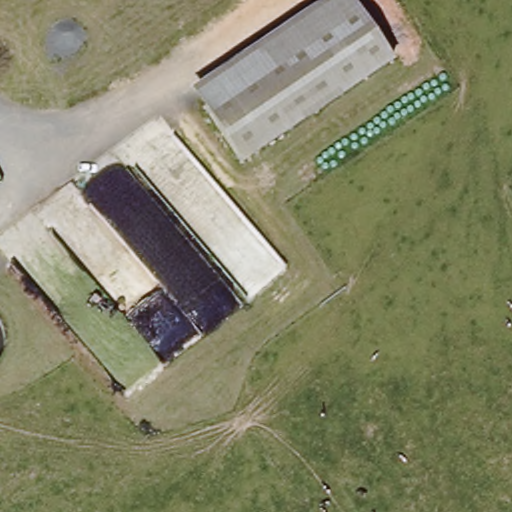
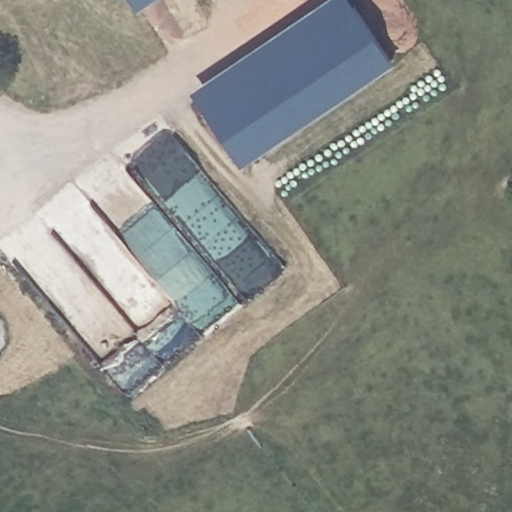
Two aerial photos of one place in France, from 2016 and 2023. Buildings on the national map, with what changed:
unchanged [(240,163),(188,89),(321,0),(354,0),(395,60),(240,163)]

